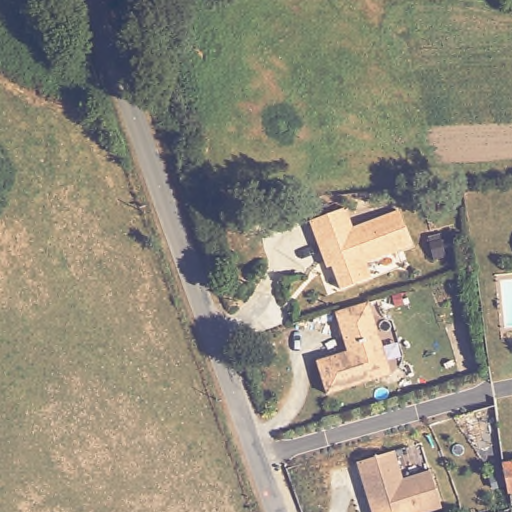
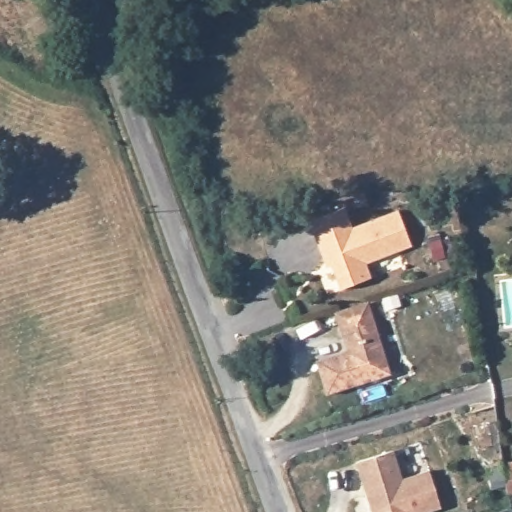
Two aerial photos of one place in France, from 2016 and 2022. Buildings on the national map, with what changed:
unchanged [(324,257),(310,220),(344,206),(352,227),(398,208),(412,242),(366,261),(372,276),(342,287),(331,260),(326,262),(324,257)]
unchanged [(383,376),(328,392),(318,359),(343,351),(349,350),(337,310),(353,305),(370,300),(388,357),(392,372),(383,376)]
unchanged [(401,479),(429,471),(440,507),(425,512),(371,512),(365,493),(367,491),(365,485),(363,486),(356,462),(392,451),(401,479)]
unchanged [(503,473),(512,471),(512,496),(503,473)]

